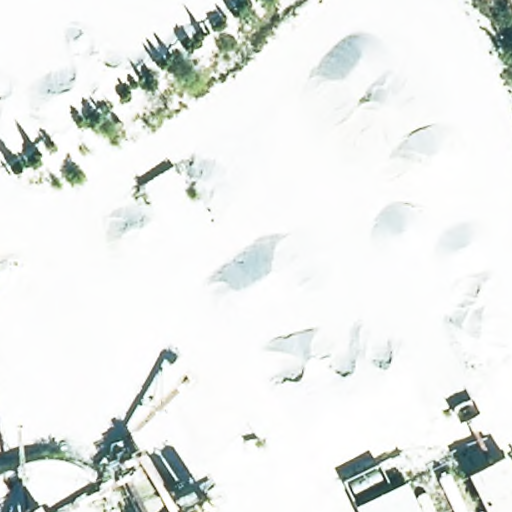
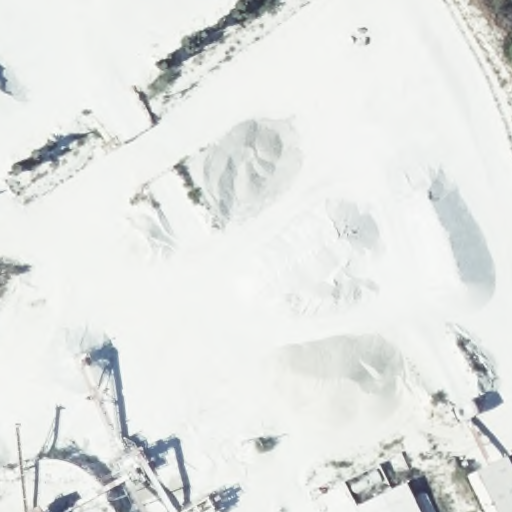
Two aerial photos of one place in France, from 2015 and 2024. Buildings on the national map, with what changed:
unchanged [(512,471),(512,512),(482,512),(464,474),(506,457),(512,471)]
unchanged [(421,512),(358,512),(354,503),(409,483),(421,512)]

